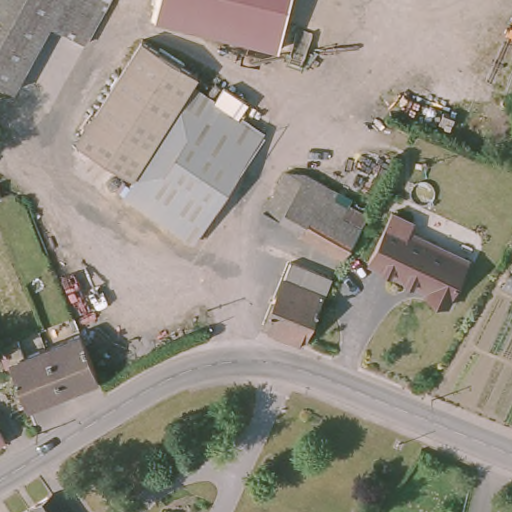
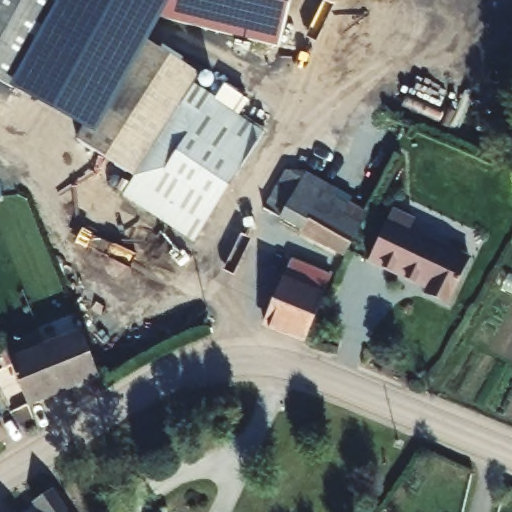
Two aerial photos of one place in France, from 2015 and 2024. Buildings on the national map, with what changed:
unchanged [(47,21),(6,86),(0,82),(0,0),(110,0),(83,43),(47,21)]
new [(161,16),(148,41),(139,35),(82,125),(6,86),(47,21),(83,43),(110,0),(161,0),(157,15),(161,16)]
unchanged [(157,15),(161,0),(289,0),(280,45),(157,15)]
unchanged [(121,198),(122,196),(124,194),(133,176),(73,138),(139,35),(199,73),(191,86),(209,100),(260,133),(199,235),(195,241),(175,230),(121,198)]
unchanged [(263,210),(285,171),(302,179),(307,173),(328,185),(313,209),(300,230),(263,210)]
unchanged [(313,209),(352,232),(342,254),(300,230),(313,209)]
unchanged [(425,295),(427,290),(395,276),(367,263),(384,225),(390,213),(410,222),(406,232),(467,259),(462,268),(447,305),(425,295)]
unchanged [(304,329),(299,341),(260,323),(286,261),(327,278),(315,304),(304,329)]
unchanged [(42,348),(78,330),(97,374),(97,375),(61,393),(42,348)]
unchanged [(6,355),(4,348),(19,341),(25,356),(42,348),(61,393),(29,408),(6,355)]
unchanged [(32,507),(25,499),(29,494),(35,499),(46,491),(58,512),(26,512),(32,507)]

